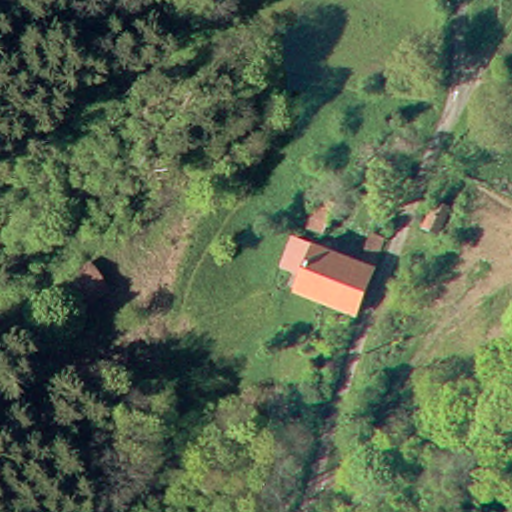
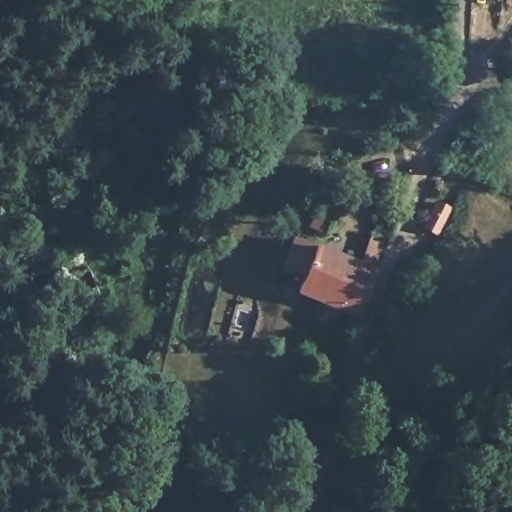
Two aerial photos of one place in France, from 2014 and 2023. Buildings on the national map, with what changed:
unchanged [(329,204),(340,211),(324,240),(311,232),(329,204)]
unchanged [(450,216),(444,222),(449,227),(439,237),(422,222),(444,209),(450,216)]
unchanged [(376,244),(384,247),(375,275),(360,320),(300,297),(306,281),(280,268),(294,241),(319,252),(365,271),(376,244)]
unchanged [(67,302),(63,296),(57,284),(57,283),(79,267),(92,283),(67,302)]

